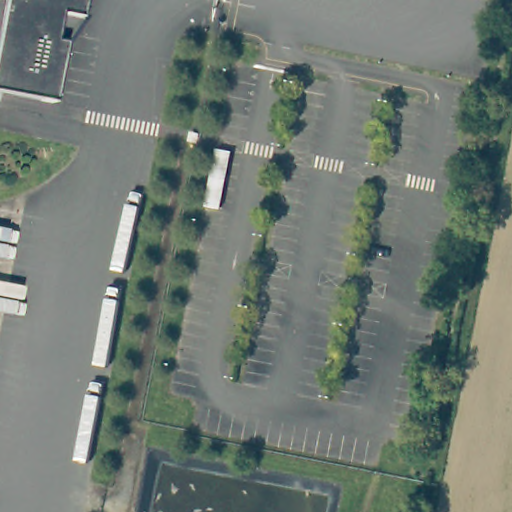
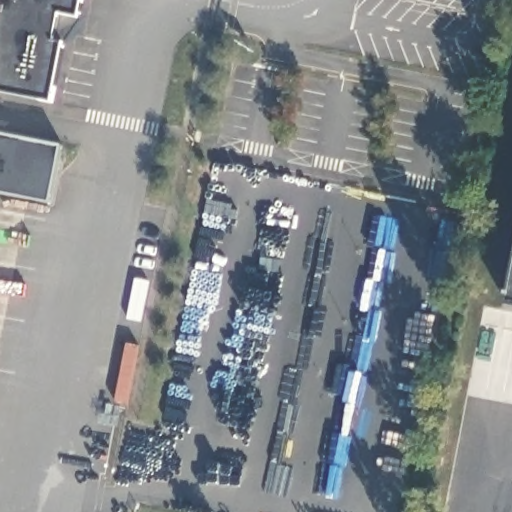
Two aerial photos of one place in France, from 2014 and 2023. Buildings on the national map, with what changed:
unchanged [(80,20),(65,42),(52,104),(0,94),(0,0),(83,0),(80,20)]
new [(62,145),(51,201),(0,192),(0,133),(62,145)]
unchanged [(227,140),(223,167),(205,165),(211,137),(227,140)]
new [(512,286),(512,305),(508,305),(512,286)]

